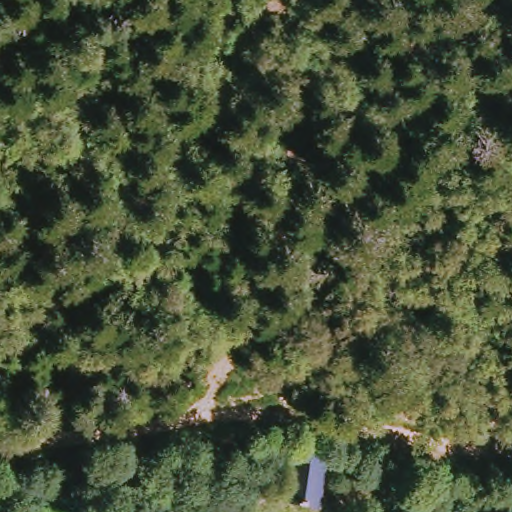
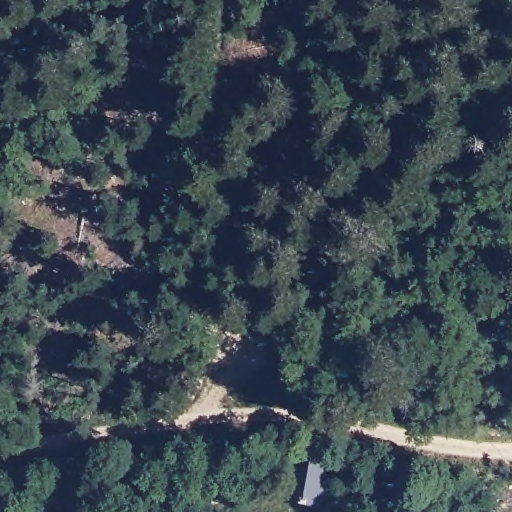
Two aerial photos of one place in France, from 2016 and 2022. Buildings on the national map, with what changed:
unchanged [(295,455),(326,461),(319,505),(287,500),(295,455)]

